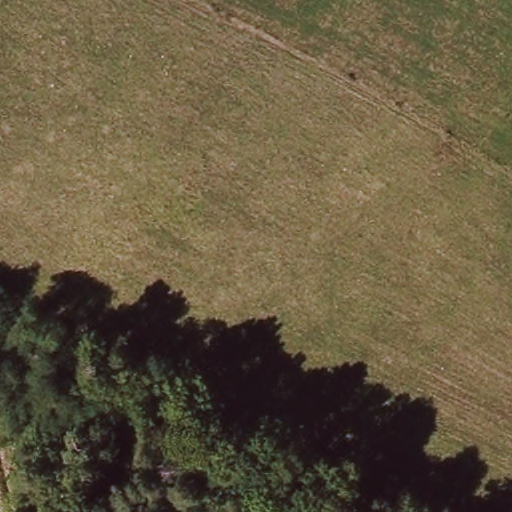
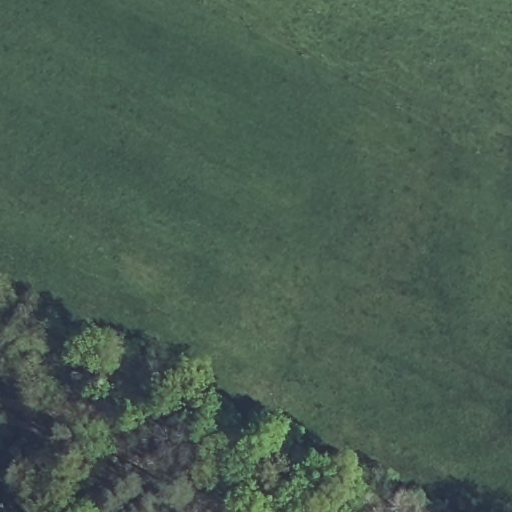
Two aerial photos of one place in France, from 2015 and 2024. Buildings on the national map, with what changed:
[]

